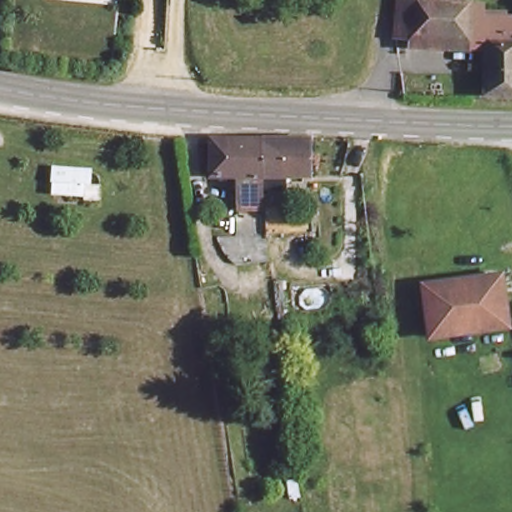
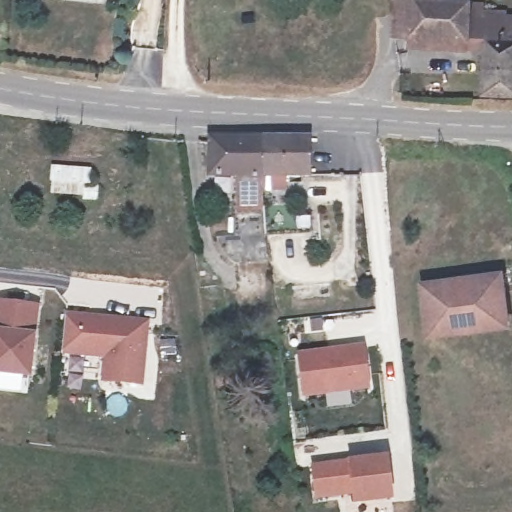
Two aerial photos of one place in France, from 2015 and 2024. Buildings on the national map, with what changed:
unchanged [(512,95),(487,96),(487,35),(402,31),(401,0),(430,0),(512,6),(512,95)]
unchanged [(267,138),(264,175),(266,207),(267,232),(267,234),(236,237),(233,195),(240,193),(242,176),(213,175),(216,135),(267,138)]
unchanged [(312,176),(264,175),(267,138),(316,140),(312,176)]
new [(82,195),(50,194),(52,181),(50,180),(52,166),(91,168),(90,185),(98,185),(97,200),(82,200),(82,195)]
new [(267,234),(266,260),(234,263),(228,258),(219,245),(216,237),(236,237),(267,234)]
unchanged [(439,336),(433,284),(512,275),(512,328),(479,332),(439,336)]
new [(37,305),(30,386),(0,383),(0,301),(37,305)]
new [(102,357),(62,355),(65,311),(150,317),(144,386),(100,382),(102,357)]
new [(361,346),(366,389),(300,395),(295,352),(361,346)]
new [(384,462),(387,510),(345,511),(343,465),(384,462)]

